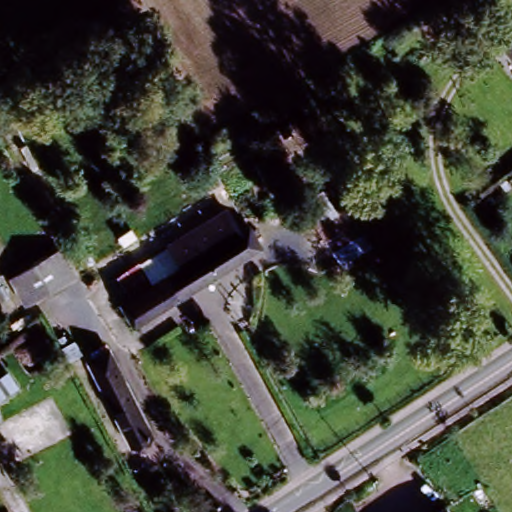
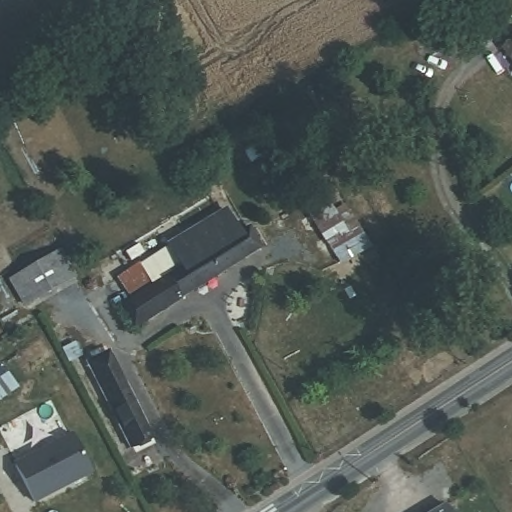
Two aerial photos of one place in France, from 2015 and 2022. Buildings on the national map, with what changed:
unchanged [(512,35),(512,60),(500,45),(512,35)]
unchanged [(322,190),(335,207),(342,204),(369,246),(337,265),(300,201),(322,190)]
unchanged [(115,303),(125,298),(115,280),(169,244),(172,247),(232,219),(235,229),(249,224),(258,244),(132,327),(115,303)]
unchanged [(59,249),(75,277),(34,301),(17,273),(59,249)]
unchanged [(159,432),(127,444),(84,361),(115,348),(159,432)]
new [(72,433),(92,474),(34,504),(14,463),(72,433)]
unchanged [(429,512),(442,504),(447,512),(429,512)]

